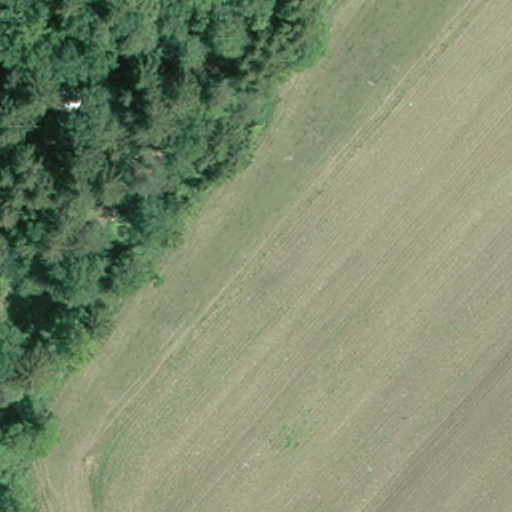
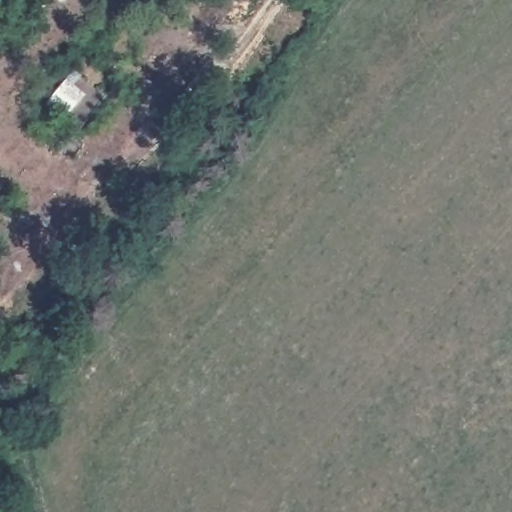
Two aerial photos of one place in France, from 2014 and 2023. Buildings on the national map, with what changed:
unchanged [(76,95),(68,105),(56,97),(65,87),(76,95)]

